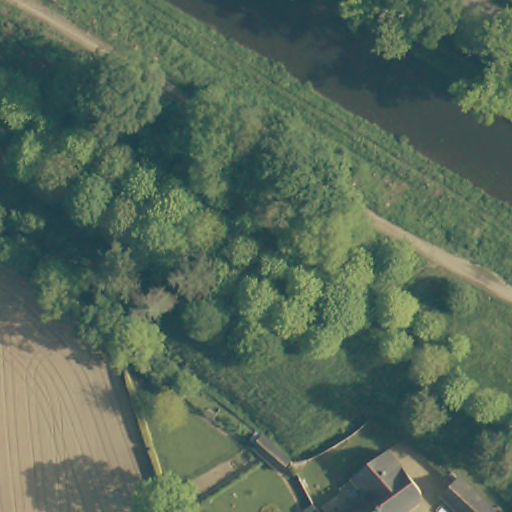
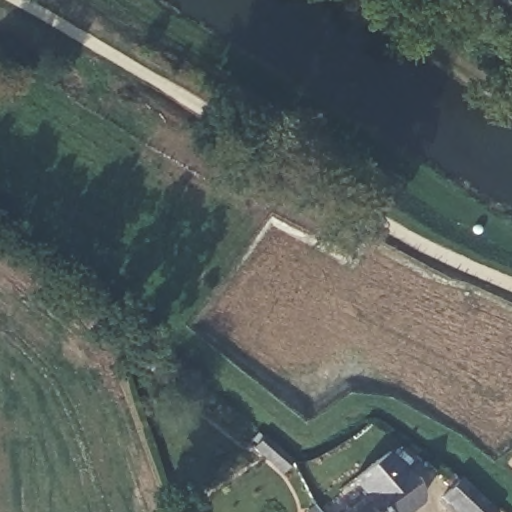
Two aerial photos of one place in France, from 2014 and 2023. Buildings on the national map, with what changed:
unchanged [(291,457),(279,471),(247,448),(259,434),(291,457)]
unchanged [(312,503),(324,495),(328,502),(336,497),(397,458),(432,504),(420,512),(319,512),(312,503)]
unchanged [(442,501),(457,483),(471,494),(491,512),(456,512),(442,501)]

